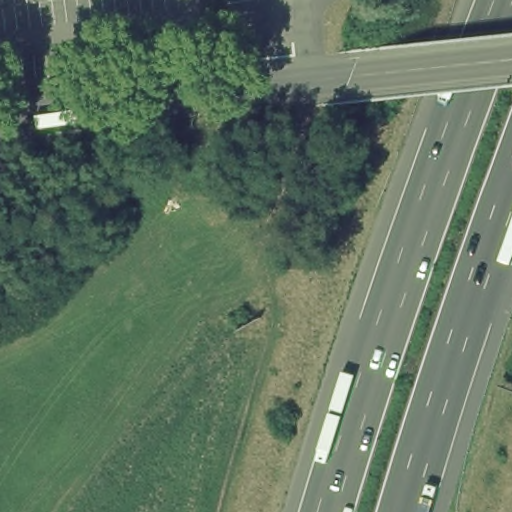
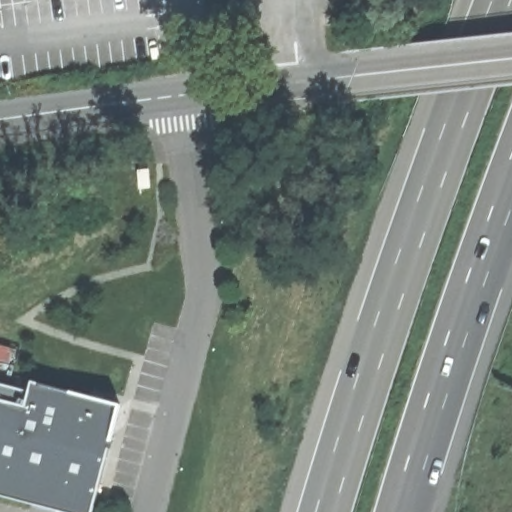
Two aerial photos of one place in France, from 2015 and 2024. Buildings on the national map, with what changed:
new [(150,167),(154,186),(142,188),(139,170),(150,167)]
new [(61,512),(42,507),(0,496),(0,382),(29,390),(32,382),(89,397),(91,392),(102,395),(102,401),(121,406),(117,422),(94,512),(61,512)]

